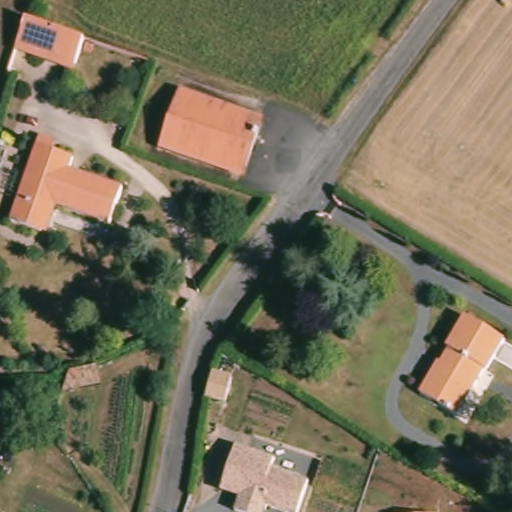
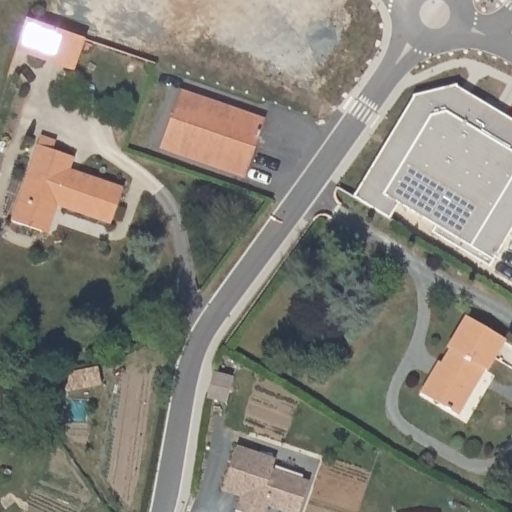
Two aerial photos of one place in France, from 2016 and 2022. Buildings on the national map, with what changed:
unchanged [(77,71),(62,65),(31,55),(26,53),(15,50),(26,16),(38,21),(73,34),(88,38),(77,71)]
new [(512,118),(512,231),(492,266),(484,261),(484,259),(471,250),(469,252),(459,246),(459,244),(445,235),(444,237),(434,231),(435,229),(405,212),(398,223),(364,202),(354,196),(414,94),(419,93),(455,84),(512,118)]
unchanged [(184,95),(264,123),(244,176),(164,148),(184,95)]
unchanged [(6,219),(33,143),(70,155),(66,167),(121,186),(109,222),(49,202),(39,230),(6,219)]
unchanged [(449,351),(446,348),(464,318),(504,341),(484,372),(481,370),(474,380),(442,362),(449,351)]
unchanged [(474,380),(454,415),(419,394),(431,373),(434,366),(439,368),(442,362),(474,380)]
unchanged [(103,387),(62,396),(71,372),(99,366),(103,387)]
new [(207,373),(227,376),(222,401),(203,398),(207,373)]
unchanged [(278,458),(274,467),(309,480),(299,512),(288,512),(272,506),(270,512),(237,512),(239,496),(222,492),(235,444),(278,458)]

